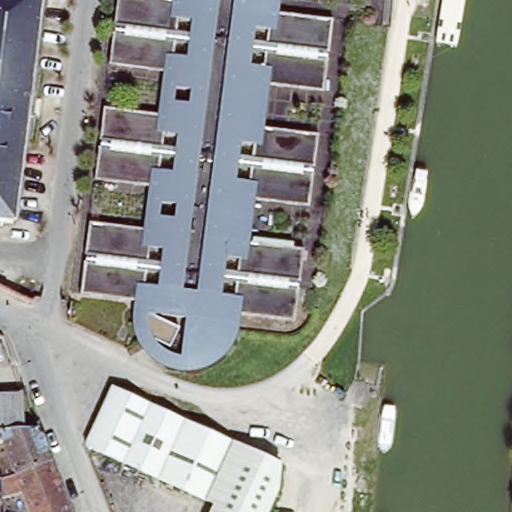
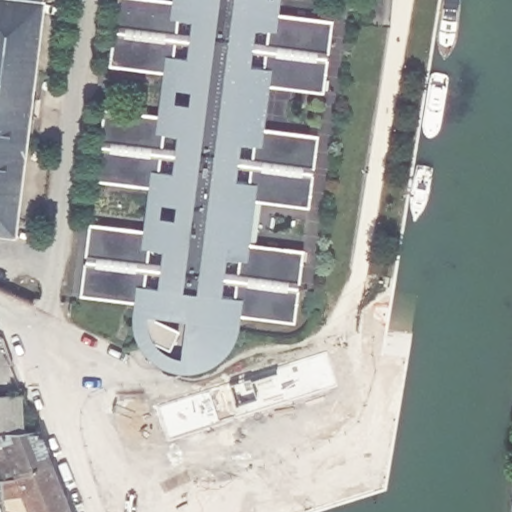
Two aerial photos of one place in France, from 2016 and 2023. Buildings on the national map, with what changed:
unchanged [(32,71),(21,151),(12,227),(0,225),(0,0),(41,0),(32,71)]
unchanged [(88,217),(141,224),(147,181),(95,174),(98,144),(100,144),(101,135),(100,135),(103,104),(156,110),(161,67),(109,60),(113,28),(115,28),(115,21),(114,21),(117,0),(279,0),(278,8),(332,15),(328,48),(326,48),(325,55),(327,55),(323,87),(268,81),(263,124),(317,131),(313,162),(312,162),(310,171),(312,171),(307,202),(254,195),(248,238),(302,246),(298,278),(295,277),(295,284),(297,285),(293,316),(240,309),(232,309),(232,312),(230,318),(228,323),(225,328),(222,333),(217,338),(212,342),(207,344),(200,347),(193,349),(186,349),(180,349),(172,347),(166,345),(160,341),(155,337),(150,331),(145,325),(143,320),(141,313),(140,305),(140,301),(140,297),(133,296),(79,289),(83,257),(85,258),(86,251),(84,250),(88,217)]
demolished [(283,488),(272,512),(215,512),(219,503),(91,444),(116,388),(283,464),(283,488)]
unchanged [(23,396),(25,429),(0,430),(0,397),(23,396)]
unchanged [(5,500),(4,482),(20,476),(10,447),(0,448),(0,430),(25,429),(37,428),(52,466),(58,483),(69,512),(34,512),(26,493),(5,500)]

